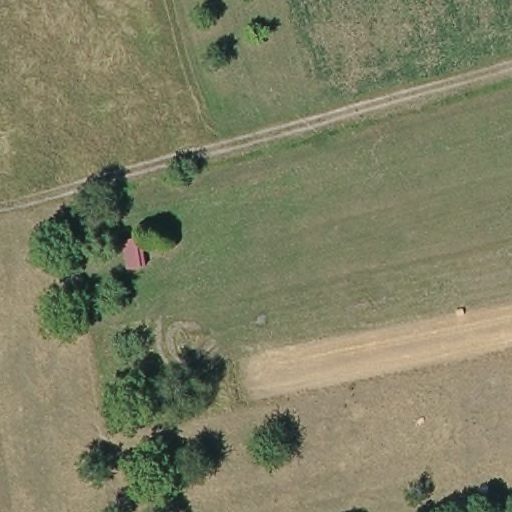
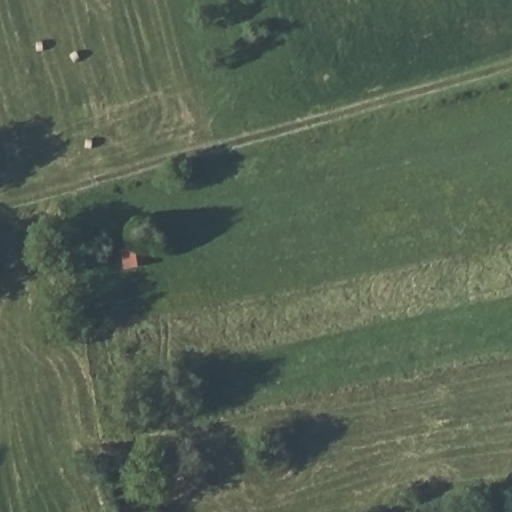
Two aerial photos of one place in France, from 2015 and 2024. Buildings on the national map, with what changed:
unchanged [(142,272),(120,274),(116,242),(137,239),(142,272)]

